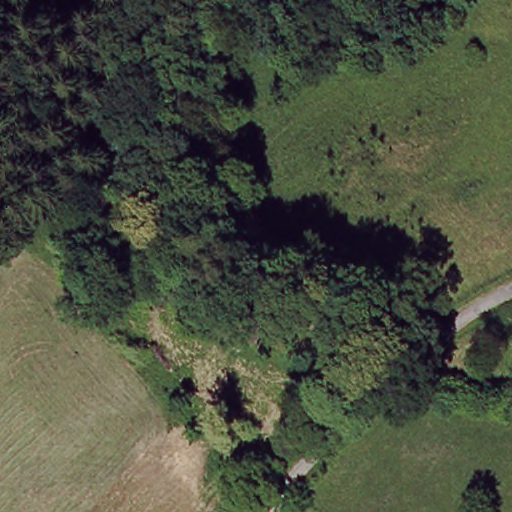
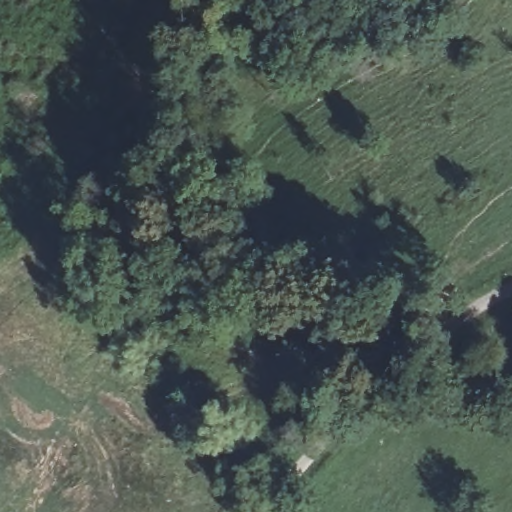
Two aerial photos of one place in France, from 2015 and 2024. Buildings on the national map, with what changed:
unchanged [(512,351),(512,367),(505,356),(512,351)]

